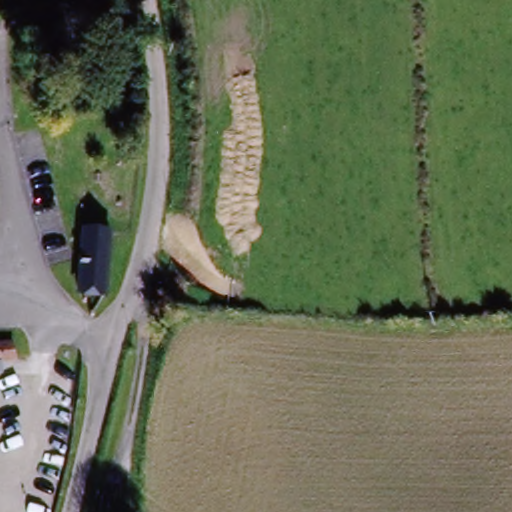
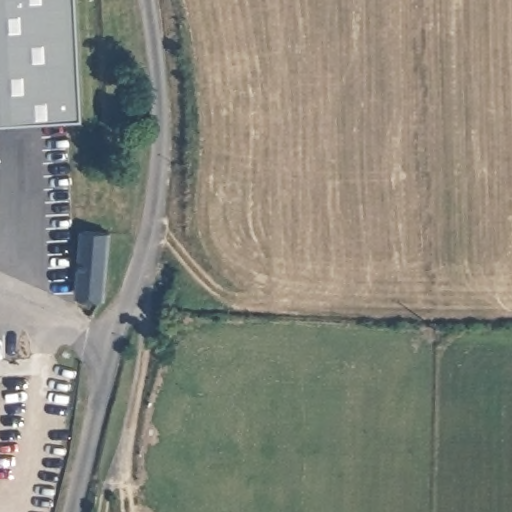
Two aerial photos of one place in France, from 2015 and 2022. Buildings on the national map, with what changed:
new [(0,128),(0,0),(87,0),(88,133),(0,128)]
unchanged [(109,227),(106,300),(81,299),(83,227),(109,227)]
unchanged [(0,352),(17,350),(18,364),(0,365),(0,352)]

